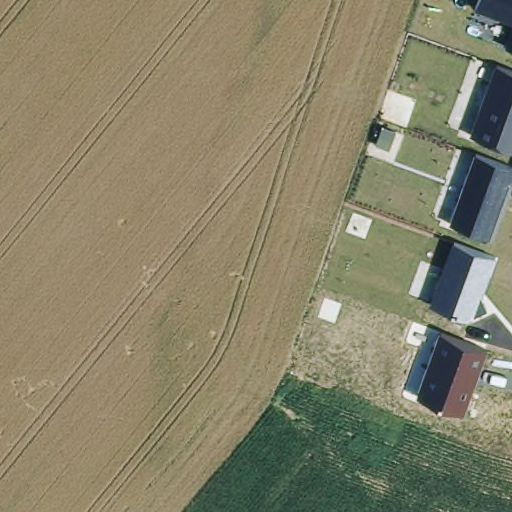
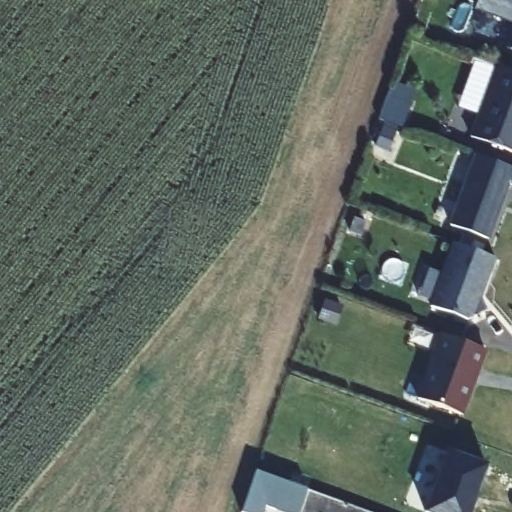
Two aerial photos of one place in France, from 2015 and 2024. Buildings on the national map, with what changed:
unchanged [(509,21),(468,6),(470,0),(512,0),(512,49),(500,44),(509,21)]
unchanged [(465,132),(491,66),(512,75),(512,149),(465,132)]
unchanged [(449,220),(477,155),(511,169),(487,235),(449,220)]
unchanged [(428,299),(451,244),(489,259),(473,314),(428,299)]
unchanged [(459,414),(415,396),(440,335),(482,353),(459,414)]
new [(471,512),(424,512),(447,451),(487,466),(471,512)]
new [(256,471),(307,490),(299,512),(280,512),(265,507),(263,512),(242,512),(256,471)]

